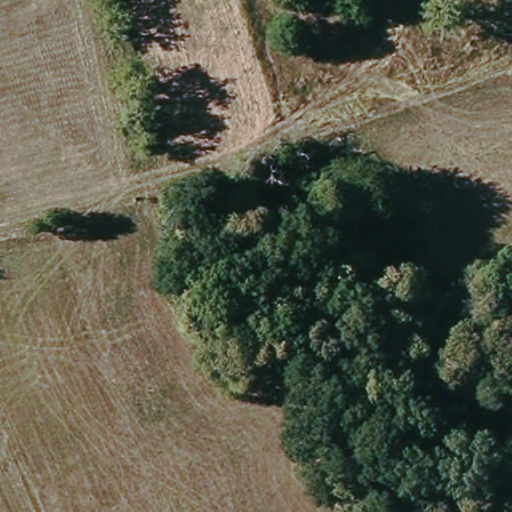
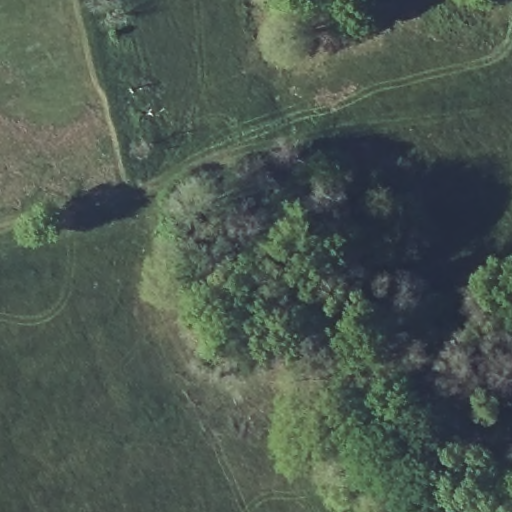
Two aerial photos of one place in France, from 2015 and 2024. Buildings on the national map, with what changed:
[]

